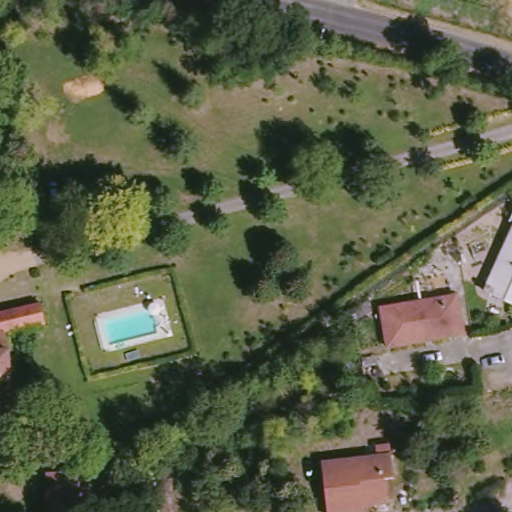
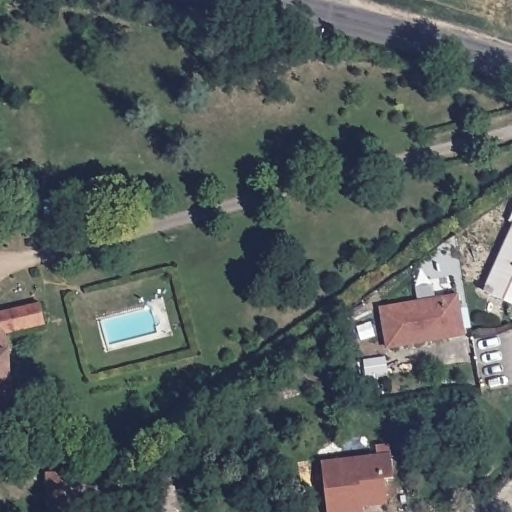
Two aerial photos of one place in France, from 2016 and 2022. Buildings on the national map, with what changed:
unchanged [(512,210),(512,299),(512,300),(480,290),(510,224),(509,216),(512,210)]
unchanged [(457,297),(463,336),(387,349),(381,309),(457,297)]
unchanged [(1,327),(0,323),(0,310),(40,300),(45,320),(4,330),(10,349),(12,382),(13,440),(0,440),(0,327),(1,327)]
unchanged [(325,481),(322,465),(342,462),(392,454),(395,478),(387,479),(390,502),(365,506),(366,512),(330,512),(325,481)]
unchanged [(57,498),(56,473),(90,472),(107,471),(107,512),(57,512),(57,498)]

